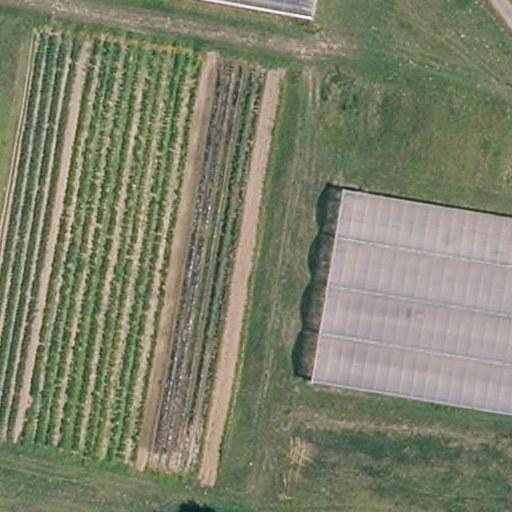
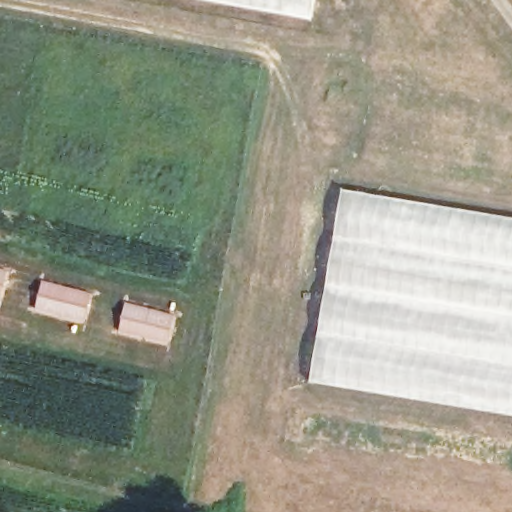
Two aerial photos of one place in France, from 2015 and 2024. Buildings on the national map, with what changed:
unchanged [(316,16),(204,0),(319,0),(316,16)]
unchanged [(512,412),(313,385),(339,193),(512,216),(512,412)]
new [(9,271),(1,300),(0,299),(0,268),(9,271)]
new [(94,294),(85,324),(34,311),(43,280),(94,294)]
new [(176,315),(169,345),(119,331),(125,301),(176,315)]

